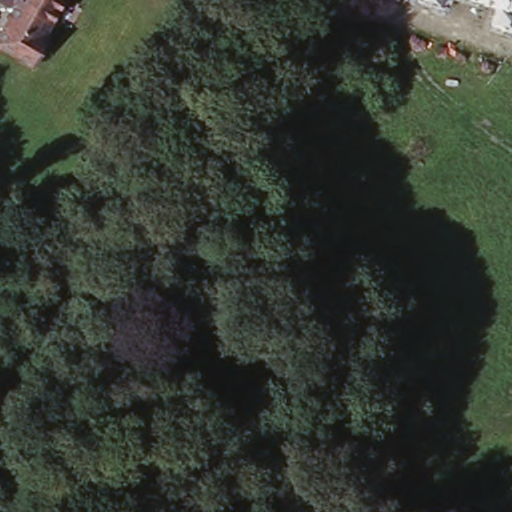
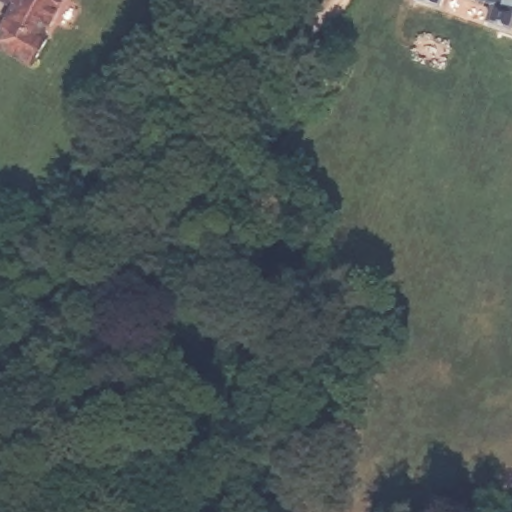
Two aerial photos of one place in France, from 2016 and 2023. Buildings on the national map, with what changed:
unchanged [(46,27),(55,34),(43,62),(0,44),(0,22),(7,5),(0,1),(0,0),(61,0),(46,27)]
unchanged [(445,6),(418,0),(447,0),(445,6)]
unchanged [(512,24),(490,17),(495,1),(491,0),(512,0),(512,24)]

